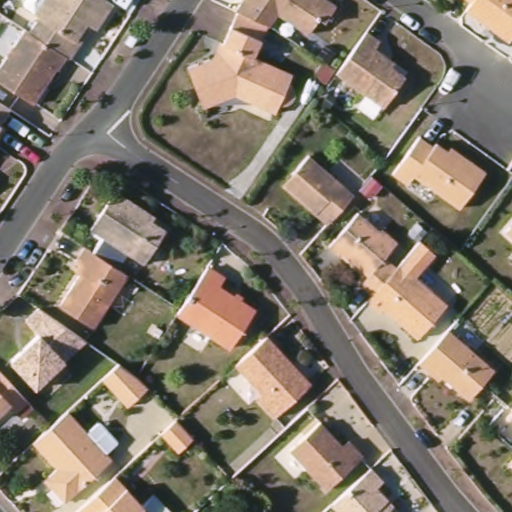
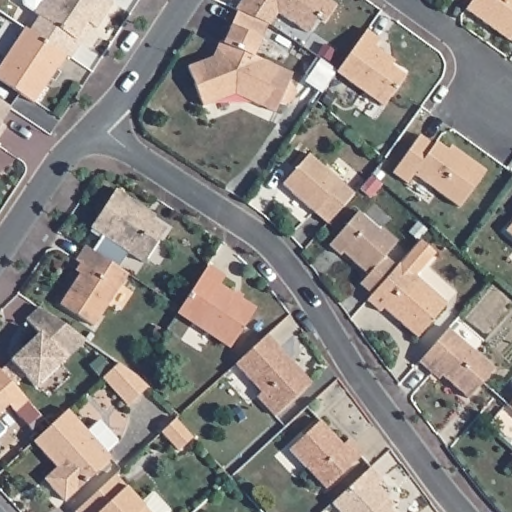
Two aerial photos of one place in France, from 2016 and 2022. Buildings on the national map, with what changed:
unchanged [(35,11),(42,0),(108,0),(114,4),(96,30),(87,23),(75,39),(80,42),(70,57),(67,55),(30,30),(40,15),(35,11)]
unchanged [(236,12),(235,11),(241,0),(326,0),(335,7),(324,22),(317,18),(306,34),(276,13),(266,27),(265,27),(257,22),(236,12)]
unchanged [(510,42),(466,11),(472,2),(469,0),(512,0),(512,38),(510,42)]
unchanged [(190,72),(190,70),(215,59),(221,44),(223,45),(236,12),(257,22),(265,27),(253,56),(291,74),(289,80),(292,81),(295,83),(296,87),(295,90),(294,92),(292,96),(288,99),(285,99),(280,97),(274,110),(237,92),(227,96),(205,106),(190,72)]
unchanged [(51,66),(40,81),(45,85),(33,102),(0,79),(0,60),(24,26),(30,30),(67,55),(56,70),(51,66)]
unchanged [(335,71),(365,30),(378,40),(373,47),(384,55),(383,61),(404,76),(382,106),(335,72),(335,71)]
unchanged [(0,123),(0,98),(11,106),(0,123)]
unchanged [(6,127),(0,135),(0,123),(6,127)]
unchanged [(460,207),(413,175),(407,183),(392,173),(418,136),(432,145),(435,142),(447,150),(450,146),(466,157),(485,170),(460,207)]
unchanged [(282,186),(306,157),(352,197),(333,218),(326,226),(315,215),(282,186)]
unchanged [(368,178),(378,187),(366,201),(356,192),(368,178)]
unchanged [(149,210),(146,214),(166,227),(144,261),(91,226),(116,189),(149,210)]
unchanged [(375,229),(378,225),(395,241),(383,254),(395,265),(391,271),(370,293),(358,282),(367,273),(350,257),(353,255),(343,246),(339,250),(328,241),(356,210),(375,229)]
unchanged [(508,231),(512,226),(512,235),(508,231)]
unchanged [(417,241),(432,254),(411,277),(442,305),(413,338),(381,308),(378,313),(363,302),(370,293),(391,271),(395,265),(397,263),(417,241)]
unchanged [(95,327),(62,306),(85,268),(78,264),(86,250),(127,277),(95,327)]
unchanged [(225,280),(219,290),(254,311),(230,347),(177,316),(180,311),(207,268),(225,280)]
unchanged [(40,310),(85,342),(35,388),(10,362),(39,335),(25,322),(39,309),(40,310)]
unchanged [(495,371),(470,400),(436,370),(432,373),(420,363),(450,330),(495,371)]
unchanged [(313,382),(277,415),(260,395),(263,392),(239,364),(270,335),(313,382)]
unchanged [(139,377),(148,387),(127,407),(101,380),(117,365),(139,377)]
unchanged [(5,408),(0,413),(0,377),(25,403),(11,415),(5,408)]
unchanged [(47,477),(57,470),(32,443),(51,426),(65,412),(91,439),(102,428),(121,448),(110,459),(62,502),(52,492),(44,482),(47,477)]
unchanged [(177,450),(161,432),(175,420),(191,437),(177,450)]
unchanged [(341,448),(346,443),(360,459),(323,492),(287,452),(318,424),(341,448)]
unchanged [(381,480),(374,485),(385,498),(382,502),(392,512),(337,512),(330,503),(370,467),(381,480)]
unchanged [(115,476),(143,507),(154,497),(168,512),(75,512),(115,476)]

